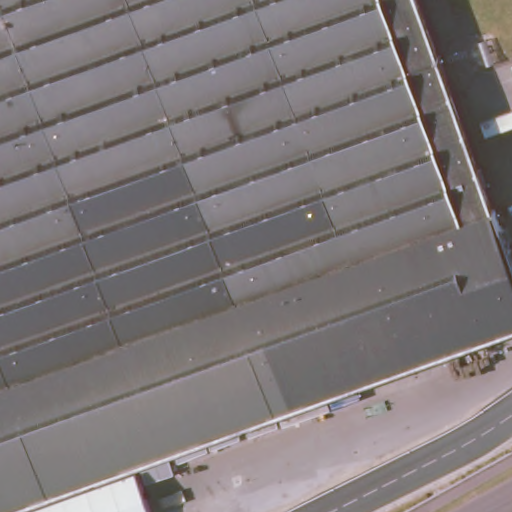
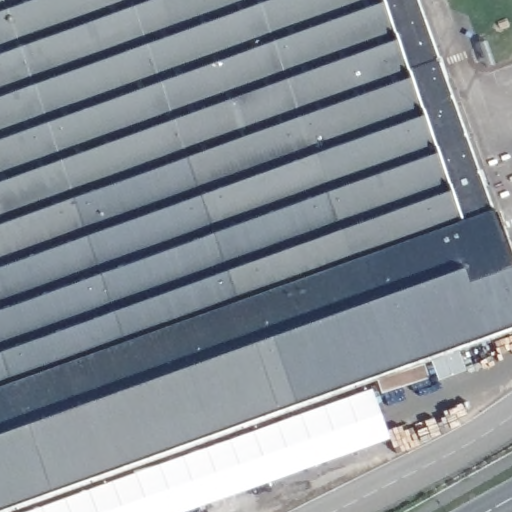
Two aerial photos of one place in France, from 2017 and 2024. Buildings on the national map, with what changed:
unchanged [(422,0),(497,209),(0,386),(0,0),(422,0)]
unchanged [(0,511),(0,386),(497,209),(504,207),(512,231),(512,328),(0,511)]
new [(182,512),(24,512),(372,388),(390,438),(182,512)]

